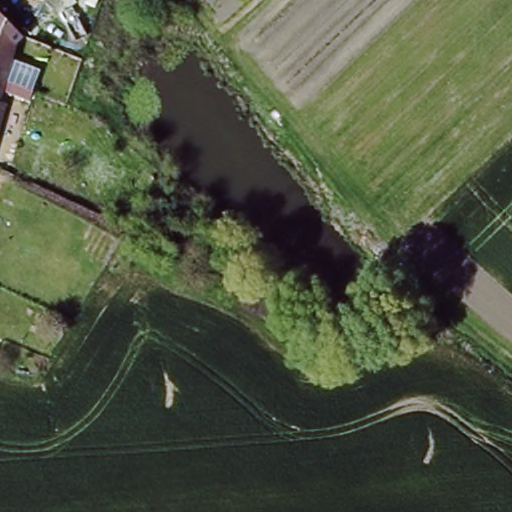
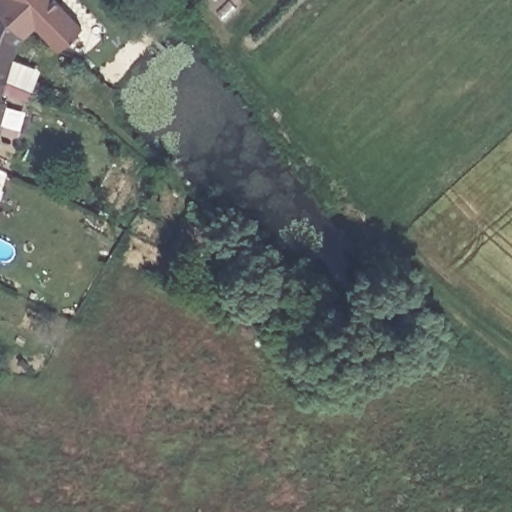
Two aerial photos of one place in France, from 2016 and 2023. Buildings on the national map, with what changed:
new [(7,25),(0,20),(0,0),(58,0),(82,24),(56,47),(35,27),(26,40),(10,28),(7,25)]
unchanged [(7,25),(10,28),(26,40),(20,44),(17,47),(10,71),(0,108),(0,20),(7,25)]
unchanged [(6,133),(14,135),(13,138),(10,154),(9,156),(0,154),(0,132),(6,133)]

